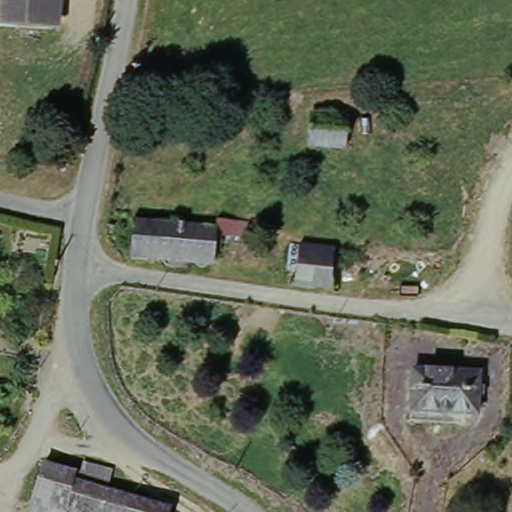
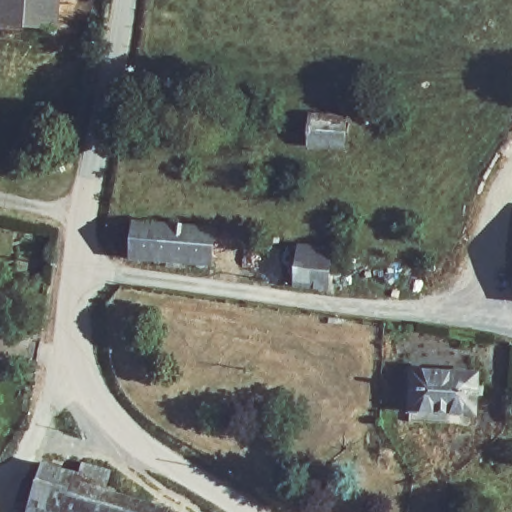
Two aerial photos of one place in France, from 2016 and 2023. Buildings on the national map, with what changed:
unchanged [(55,33),(1,29),(4,0),(57,0),(55,33)]
unchanged [(345,112),(346,145),(311,145),(311,112),(345,112)]
unchanged [(220,219),(244,219),(245,260),(221,260),(219,227),(220,219)]
unchanged [(221,260),(136,261),(136,227),(219,227),(221,260)]
unchanged [(325,287),(296,287),(297,265),(299,247),(328,247),(325,287)]
unchanged [(480,367),(482,410),(454,410),(454,421),(412,420),(411,366),(480,367)]
unchanged [(76,467),(74,475),(170,508),(168,512),(30,512),(46,457),(76,467)]

